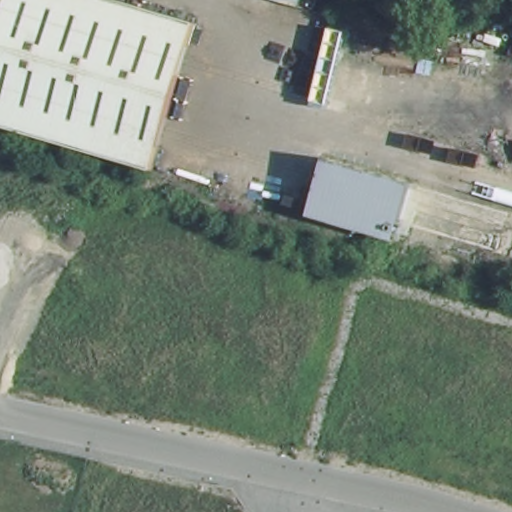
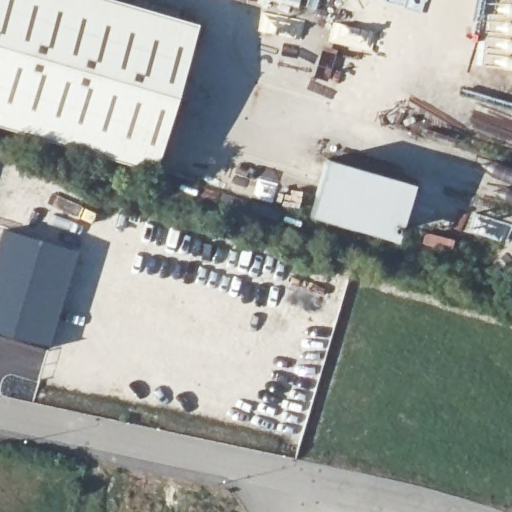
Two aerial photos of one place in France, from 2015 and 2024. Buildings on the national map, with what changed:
unchanged [(132,0),(196,18),(154,167),(0,122),(0,0),(132,0)]
new [(271,0),(299,0),(298,7),(271,0)]
unchanged [(371,172),(418,187),(401,239),(364,229),(315,216),(332,160),(371,172)]
new [(0,336),(0,237),(3,229),(75,251),(45,350),(0,336)]

